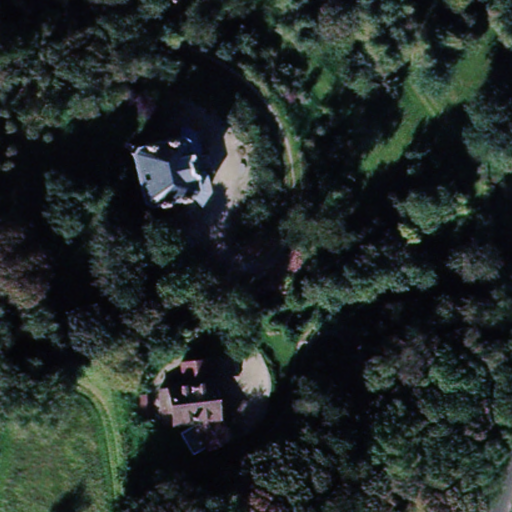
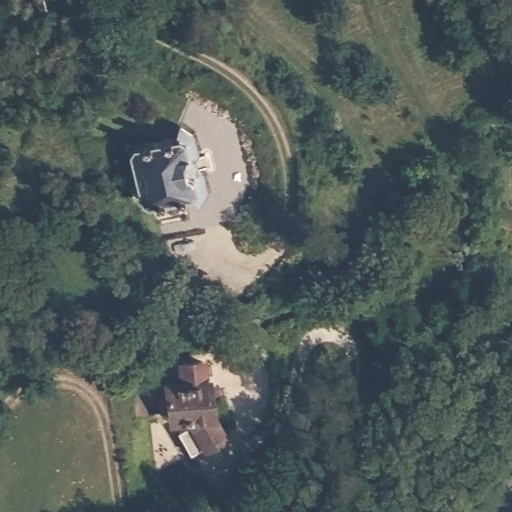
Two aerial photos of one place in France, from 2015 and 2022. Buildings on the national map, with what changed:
unchanged [(39,19),(34,0),(46,0),(51,16),(39,19)]
unchanged [(176,132),(191,138),(192,153),(185,160),(186,171),(196,171),(199,188),(190,197),(152,206),(142,198),(130,150),(134,142),(176,132)]
unchanged [(209,372),(212,372),(217,411),(229,426),(196,447),(184,426),(197,417),(195,411),(177,415),(176,406),(166,407),(163,388),(174,385),(173,379),(188,375),(186,358),(206,355),(209,372)]
unchanged [(147,389),(151,408),(139,411),(136,392),(147,389)]

